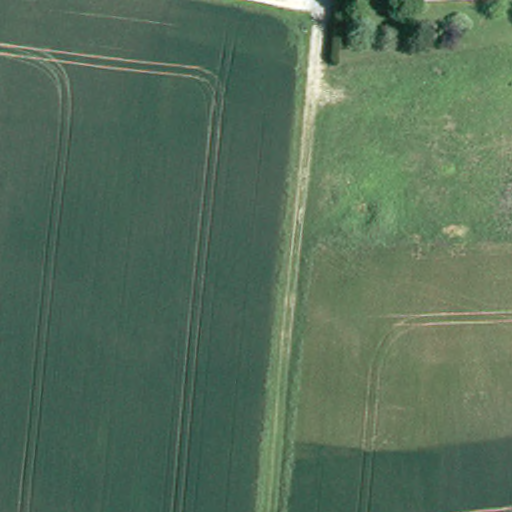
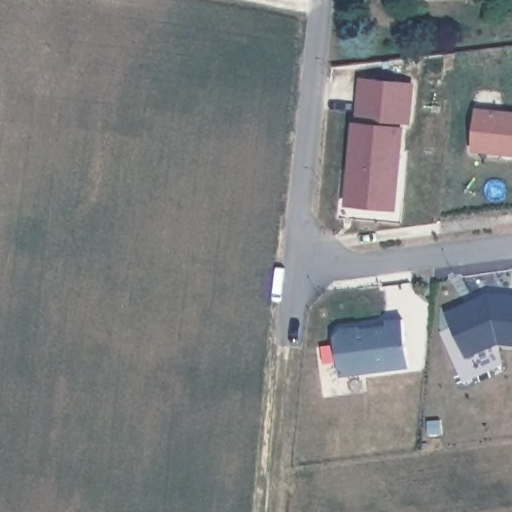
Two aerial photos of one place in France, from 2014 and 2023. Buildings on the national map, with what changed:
new [(404,126),(396,211),(343,206),(352,121),(355,121),(358,78),(415,83),(410,128),(404,126)]
new [(512,157),(472,153),(475,108),(512,112),(512,157)]
new [(512,294),(512,346),(497,345),(466,359),(445,312),(489,291),(512,294)]
new [(387,322),(402,319),(410,368),(340,377),(335,335),(342,328),(359,326),(359,328),(387,325),(387,322)]

